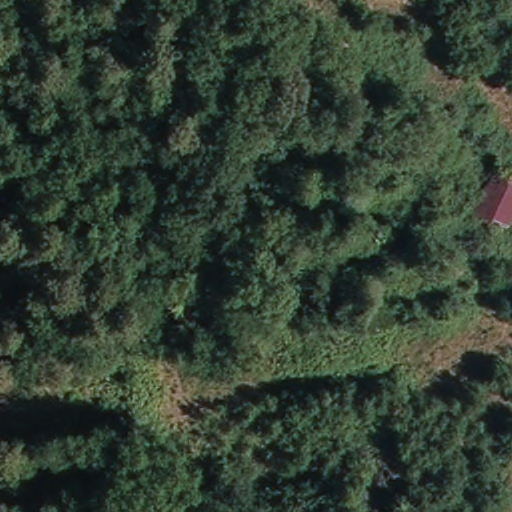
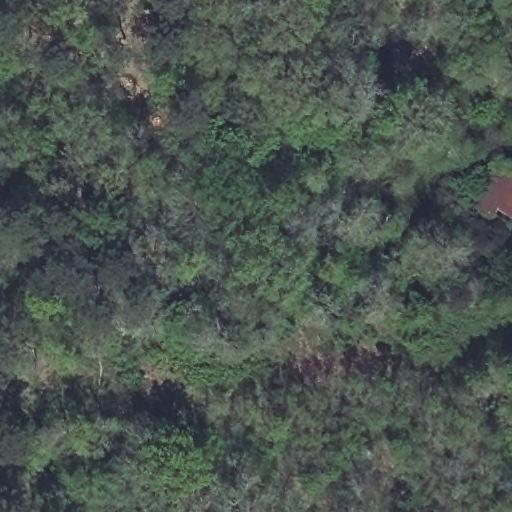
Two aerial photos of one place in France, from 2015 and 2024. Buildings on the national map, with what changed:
unchanged [(502,162),(512,168),(512,223),(480,208),(502,162)]

